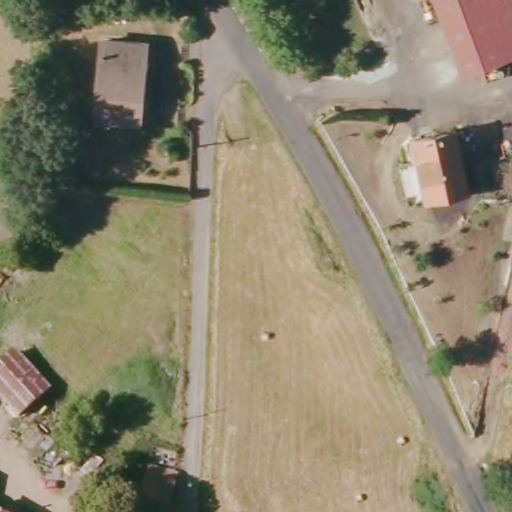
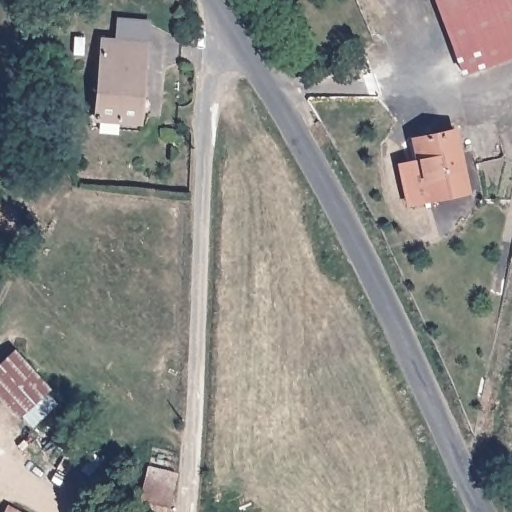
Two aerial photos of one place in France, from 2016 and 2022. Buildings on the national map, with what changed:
unchanged [(464,75),(457,75),(432,0),(512,0),(512,58),(464,75)]
unchanged [(148,44),(141,121),(99,118),(106,41),(148,44)]
unchanged [(465,191),(408,210),(398,170),(415,164),(409,143),(449,132),(465,191)]
unchanged [(16,360),(47,393),(17,420),(0,401),(0,365),(12,355),(16,360)]
unchanged [(168,512),(138,512),(150,471),(178,479),(168,512)]

